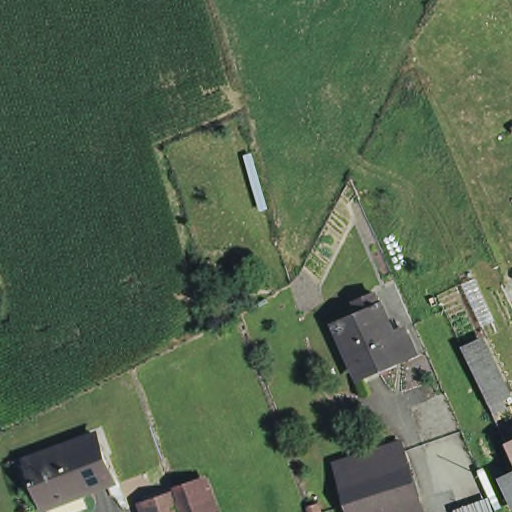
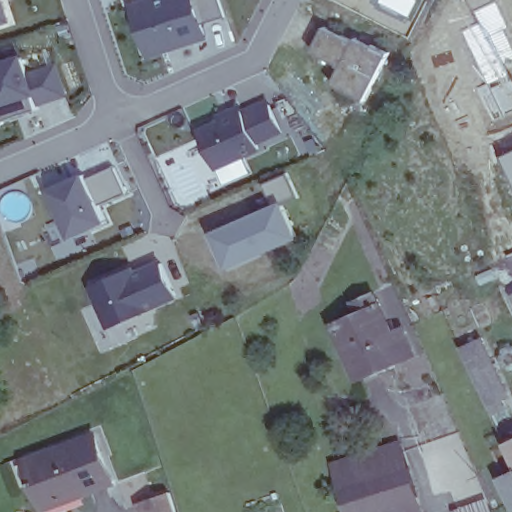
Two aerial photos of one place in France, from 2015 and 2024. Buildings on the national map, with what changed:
new [(14,2),(10,3),(16,22),(0,28),(0,0),(13,0),(14,2)]
new [(153,0),(219,0),(225,17),(215,22),(217,40),(155,57),(137,5),(153,0)]
new [(354,41),(356,38),(372,47),(374,44),(390,52),(365,100),(333,83),(342,65),(314,51),(326,27),(354,41)]
new [(0,61),(25,52),(43,108),(0,123),(0,61)]
new [(257,145),(260,151),(216,170),(198,127),(216,120),(215,116),(240,105),(241,109),(266,98),(282,134),(257,145)]
new [(85,175),(103,221),(68,236),(48,189),(85,175)]
new [(288,201),(304,236),(233,268),(217,232),(288,201)]
new [(130,263),(134,269),(161,258),(175,294),(111,321),(90,283),(130,263)]
unchanged [(342,320),(366,310),(361,298),(381,289),(398,330),(410,325),(420,345),(408,350),(408,352),(365,371),(342,320)]
unchanged [(457,349),(475,340),(489,371),(501,397),(497,400),(500,408),(487,414),(471,380),(457,349)]
unchanged [(28,488),(27,486),(30,485),(23,466),(27,464),(90,440),(108,487),(78,498),(43,512),(40,512),(31,487),(28,488)]
unchanged [(506,444),(512,441),(512,457),(506,444)]
unchanged [(336,474),(403,452),(410,471),(341,493),(336,474)]
unchanged [(388,512),(347,512),(341,493),(410,471),(418,502),(422,512),(390,512),(390,511),(388,512)]
unchanged [(506,476),(512,474),(512,489),(506,476)]
unchanged [(170,493),(177,512),(145,512),(142,503),(170,493)]
unchanged [(491,512),(460,512),(488,502),(491,512)]

